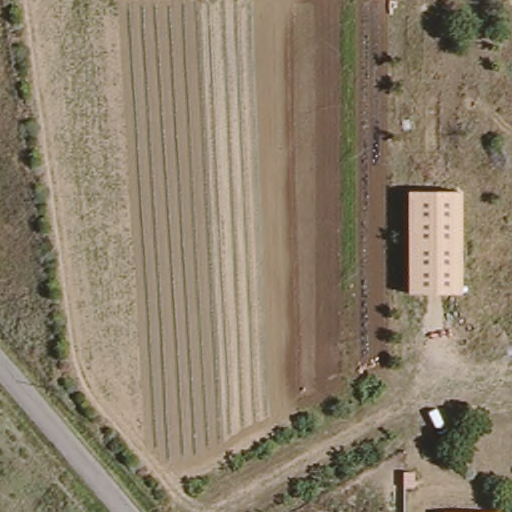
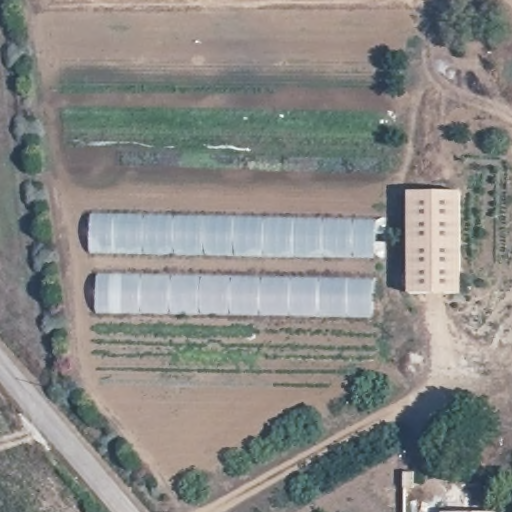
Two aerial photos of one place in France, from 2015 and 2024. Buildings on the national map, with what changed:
unchanged [(410,192),(460,192),(460,293),(409,292),(410,192)]
new [(89,252),(91,215),(377,221),(375,258),(89,252)]
new [(372,316),(98,313),(98,275),(373,278),(372,316)]
unchanged [(503,512),(442,512),(502,510),(503,512)]

